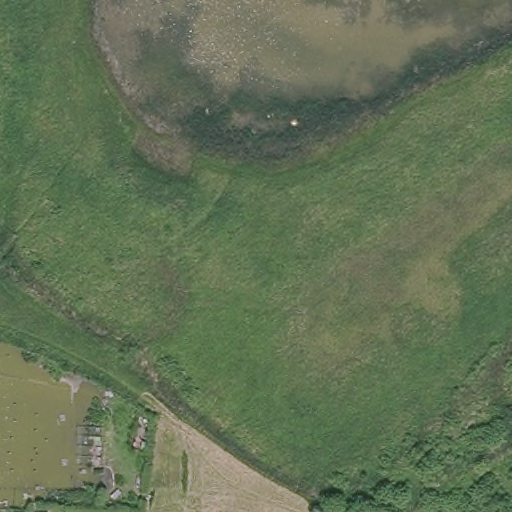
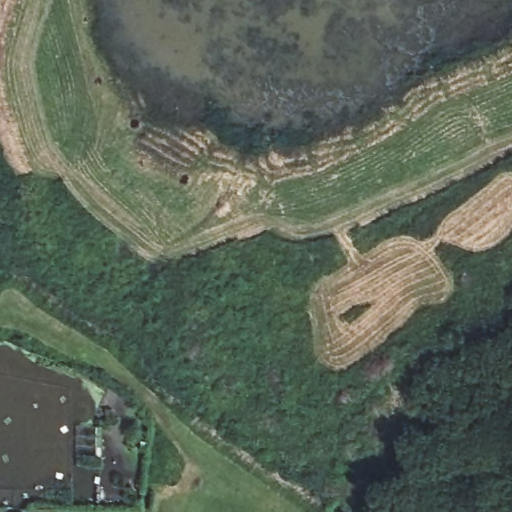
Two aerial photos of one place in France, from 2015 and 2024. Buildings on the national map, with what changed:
[]

